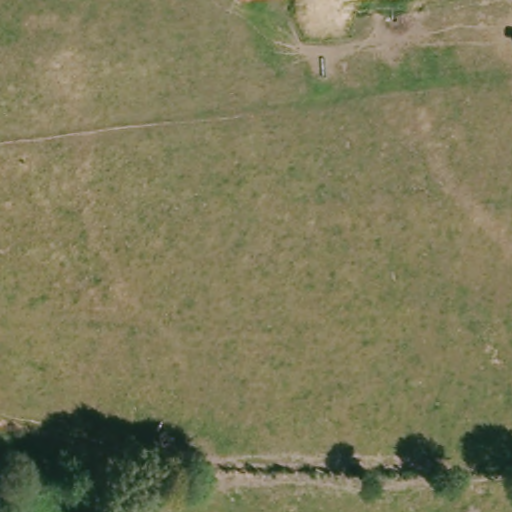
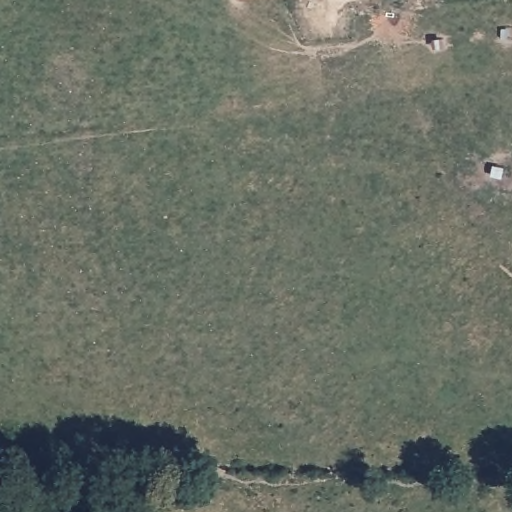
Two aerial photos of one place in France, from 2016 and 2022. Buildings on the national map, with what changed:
[]

